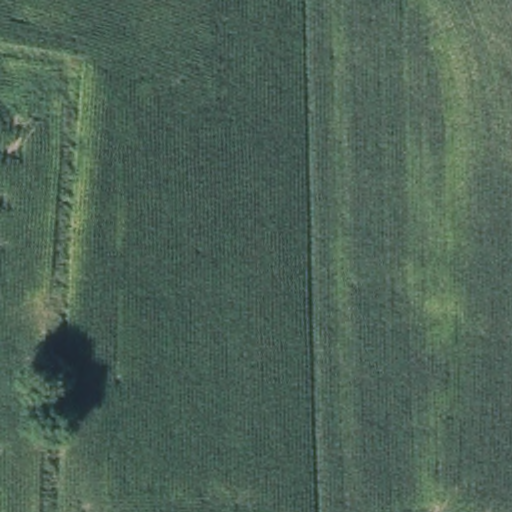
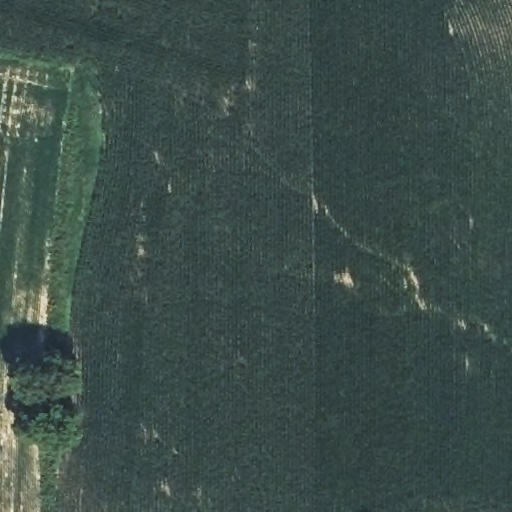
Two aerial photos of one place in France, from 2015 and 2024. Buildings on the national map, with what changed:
[]

